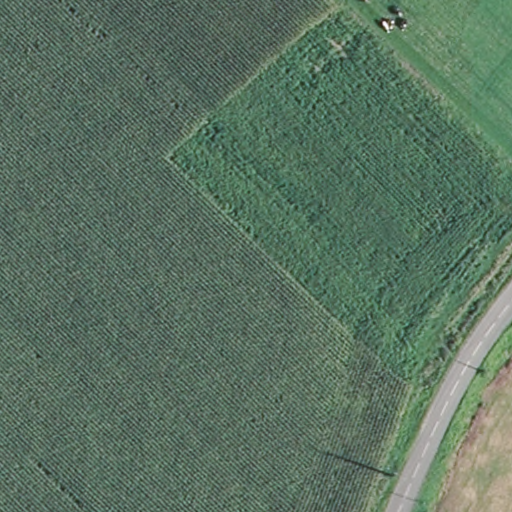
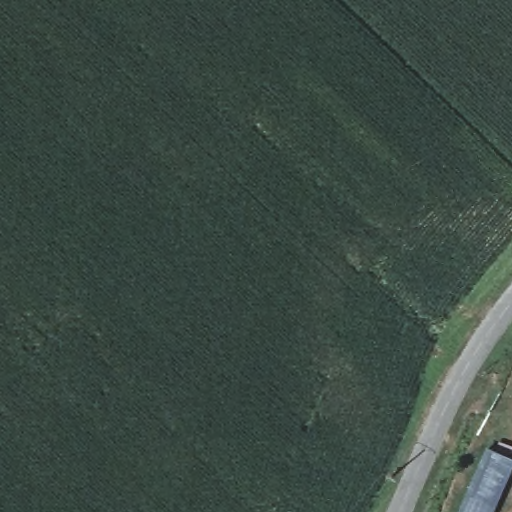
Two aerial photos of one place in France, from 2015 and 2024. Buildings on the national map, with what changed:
new [(487,451),(512,462),(512,469),(493,512),(460,512),(487,451)]

